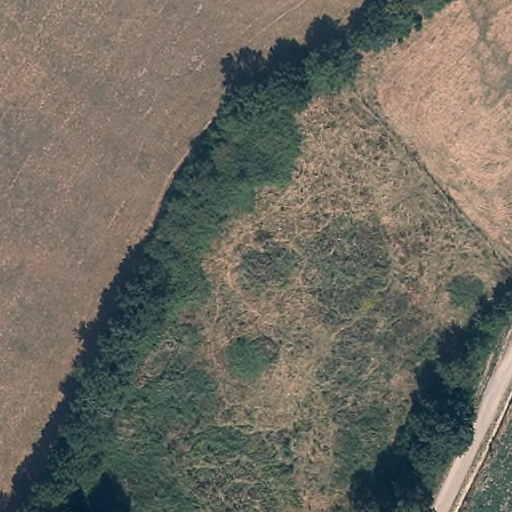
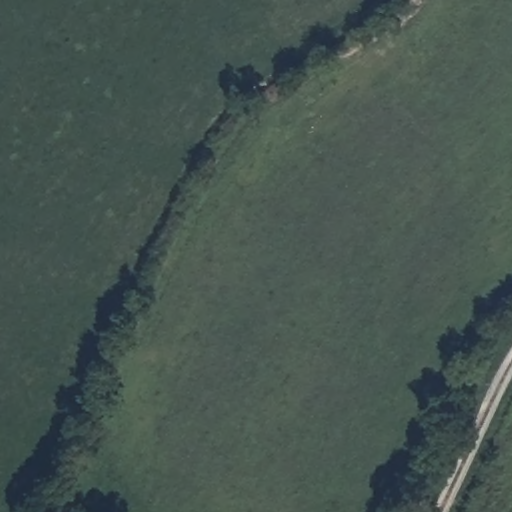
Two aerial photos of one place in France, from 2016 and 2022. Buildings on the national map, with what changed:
[]

